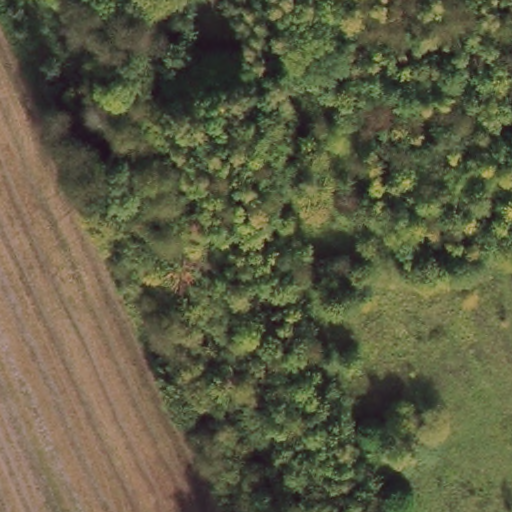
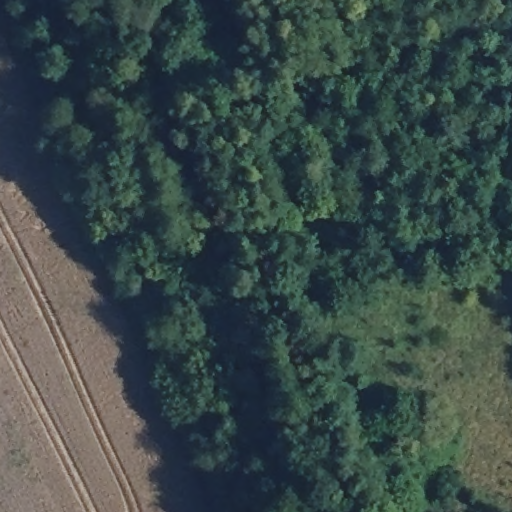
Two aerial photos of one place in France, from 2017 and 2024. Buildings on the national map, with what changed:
unchanged [(150,20),(180,12),(186,39),(157,47),(150,20)]

